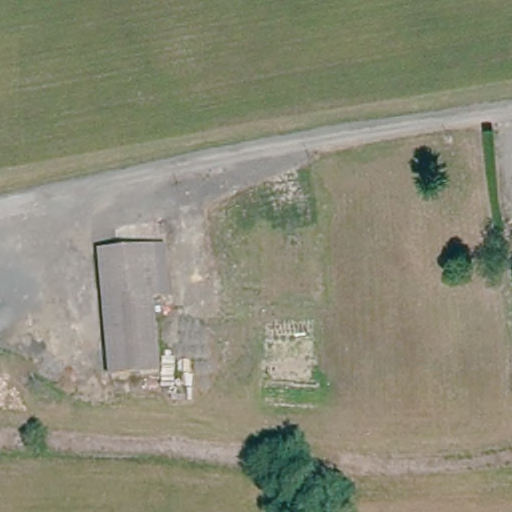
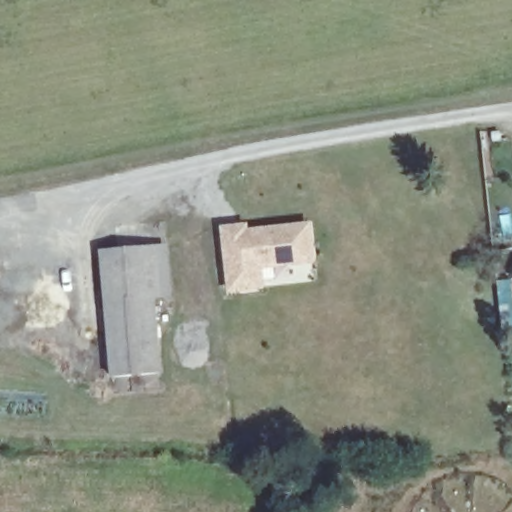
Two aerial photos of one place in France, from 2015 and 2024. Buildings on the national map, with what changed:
new [(249,224),(250,229),(312,222),(315,265),(264,270),(266,290),(227,294),(222,227),(249,224)]
unchanged [(100,244),(149,242),(155,368),(109,370),(100,244)]

